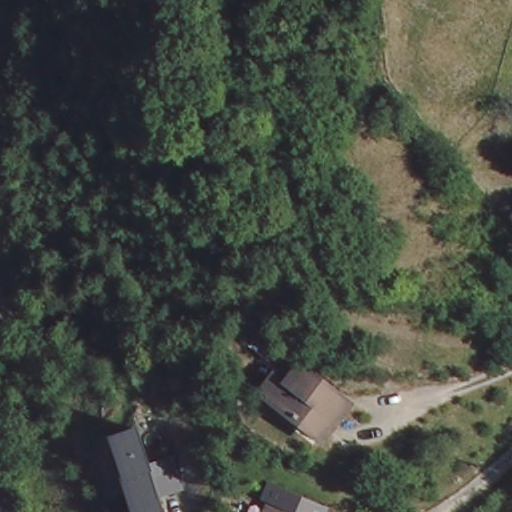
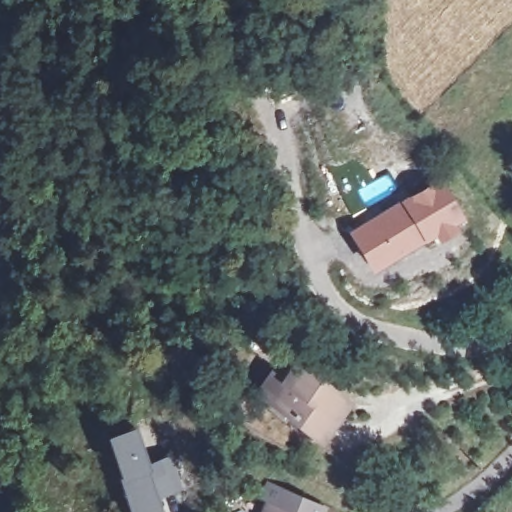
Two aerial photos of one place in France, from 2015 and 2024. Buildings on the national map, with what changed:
new [(346,229),(438,176),(462,216),(451,222),(456,229),(436,240),(433,234),(370,270),(346,229)]
unchanged [(261,390),(275,372),(287,381),(301,363),(346,398),(347,399),(321,433),(318,434),(273,399),(261,390)]
unchanged [(146,460),(172,456),(180,488),(158,494),(163,512),(130,512),(107,435),(134,427),(146,460)]
demolished [(189,447),(169,450),(167,431),(186,427),(189,447)]
unchanged [(317,512),(265,512),(271,500),(265,497),(271,484),(287,492),(320,506),(317,512)]

